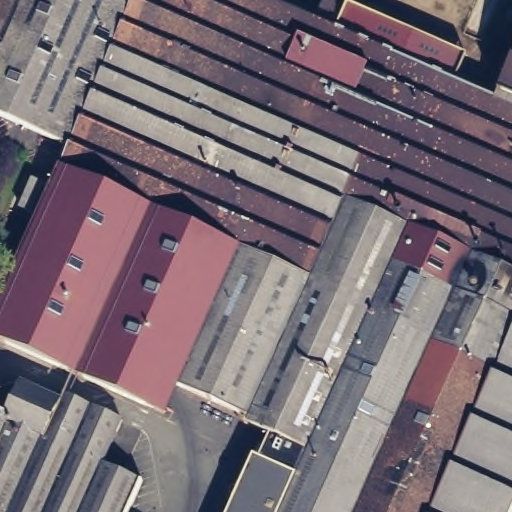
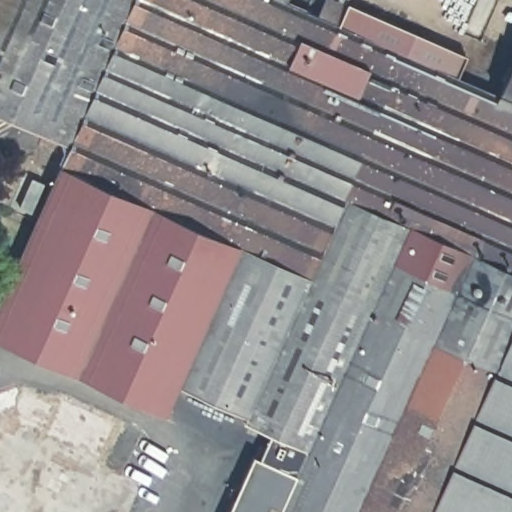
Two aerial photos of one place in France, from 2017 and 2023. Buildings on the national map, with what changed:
unchanged [(463,76),(501,92),(512,67),(512,512),(232,512),(258,455),(264,458),(274,435),(248,424),(250,418),(181,388),(168,415),(0,341),(0,312),(73,147),(0,115),(0,0),(292,0),(326,15),(332,0),(340,0),(351,5),(343,24),(463,76)]
unchanged [(351,5),(352,3),(472,56),(463,76),(343,24),(351,5)]
demolished [(0,471),(0,393),(24,385),(64,401),(67,395),(126,421),(109,464),(148,481),(134,512),(88,512),(0,471)]

